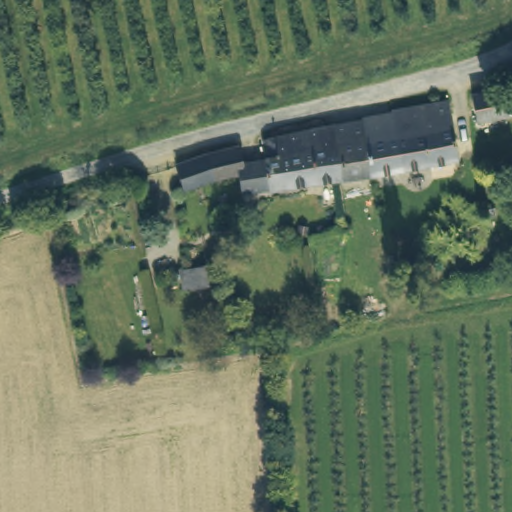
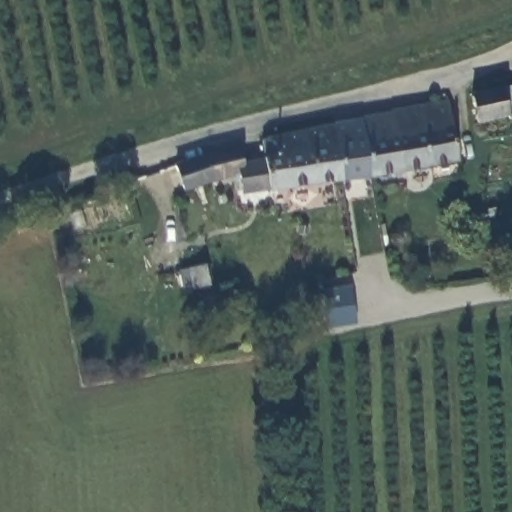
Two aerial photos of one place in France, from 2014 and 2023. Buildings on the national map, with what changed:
unchanged [(501,86),(507,113),(476,120),(470,93),(501,86)]
unchanged [(460,159),(371,174),(363,120),(394,113),(395,108),(450,101),(460,159)]
unchanged [(343,178),(336,125),(363,120),(371,174),(343,178)]
unchanged [(244,165),(267,161),(265,141),(336,125),(343,178),(272,190),(272,187),(250,190),(247,172),(212,179),(189,189),(180,166),(212,152),(241,146),(244,165)]
unchanged [(189,268),(203,266),(205,283),(192,285),(189,268)]

